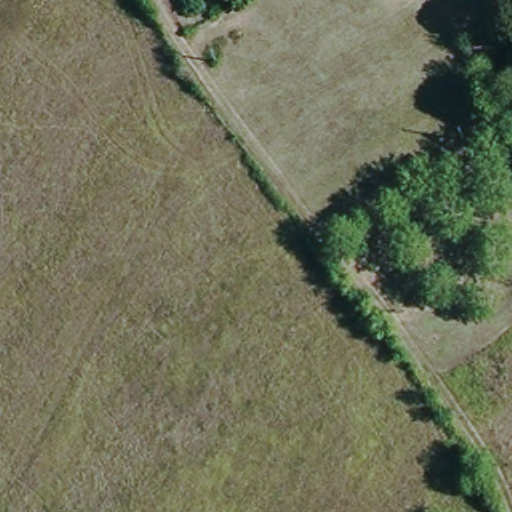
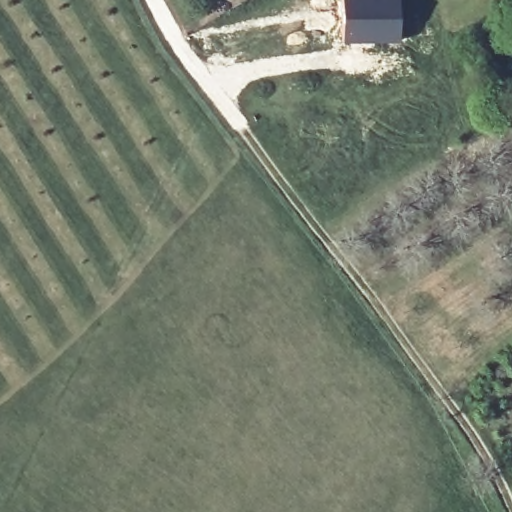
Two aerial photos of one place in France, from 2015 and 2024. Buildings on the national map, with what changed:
new [(342,0),(399,0),(399,43),(342,43),(342,0)]

